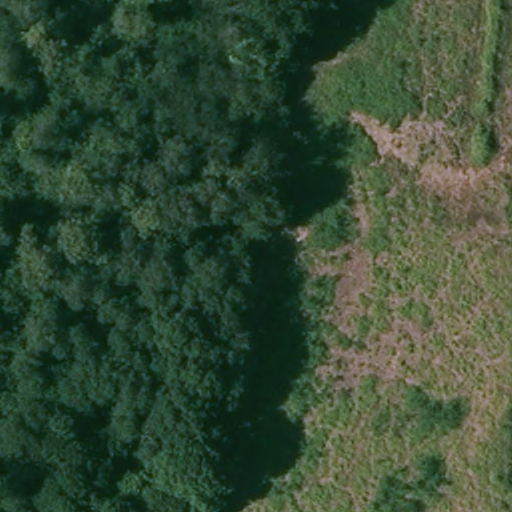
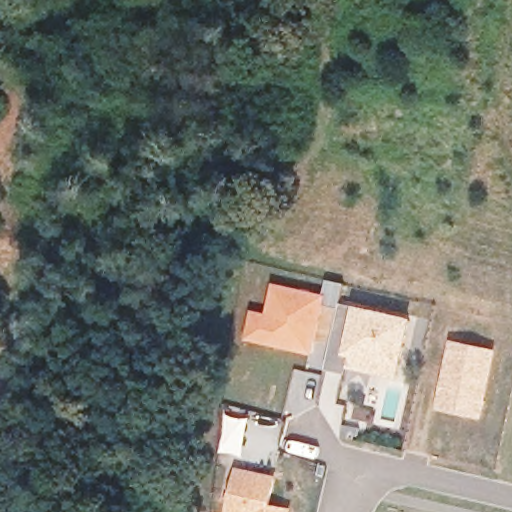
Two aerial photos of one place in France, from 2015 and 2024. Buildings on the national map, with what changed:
new [(251,308),(265,311),(273,281),(323,292),(327,278),(346,283),(338,310),(325,307),(314,355),(244,339),(251,308)]
new [(412,321),(402,364),(350,352),(346,372),(327,368),(340,305),(412,321)]
new [(450,338),(498,349),(482,420),(435,409),(450,338)]
new [(273,504),(292,508),(291,512),(230,512),(239,467),(277,476),(273,504)]

